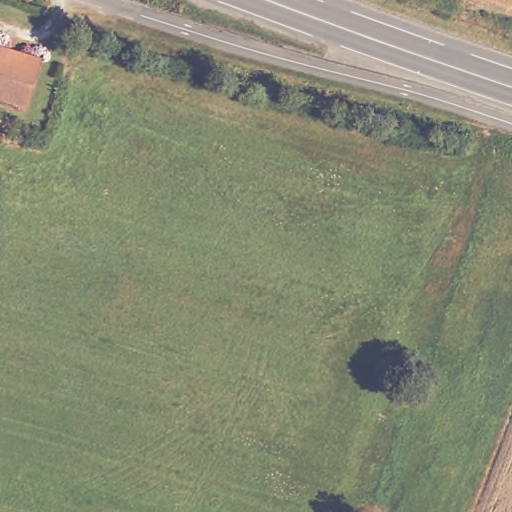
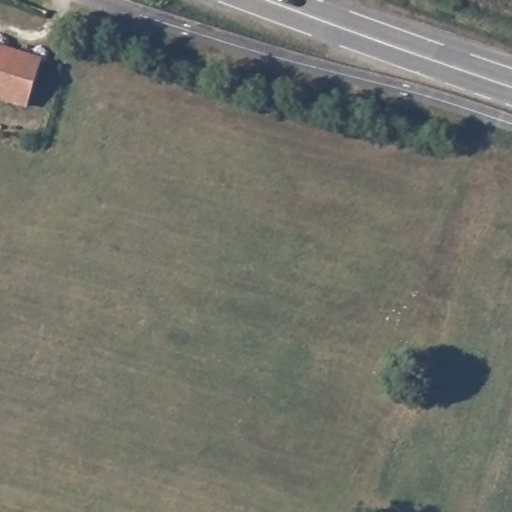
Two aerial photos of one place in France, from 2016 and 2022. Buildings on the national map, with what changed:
unchanged [(34,116),(0,105),(0,52),(50,68),(34,116)]

